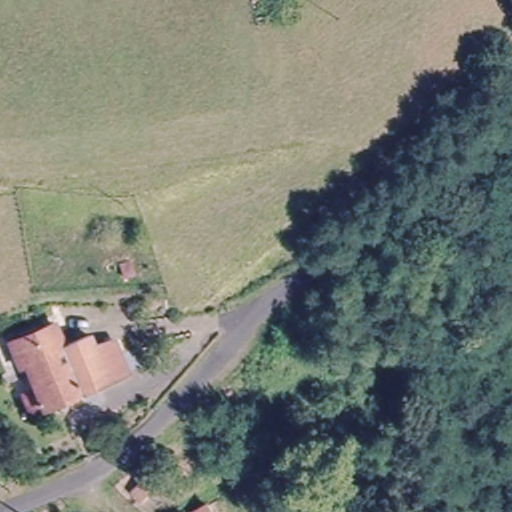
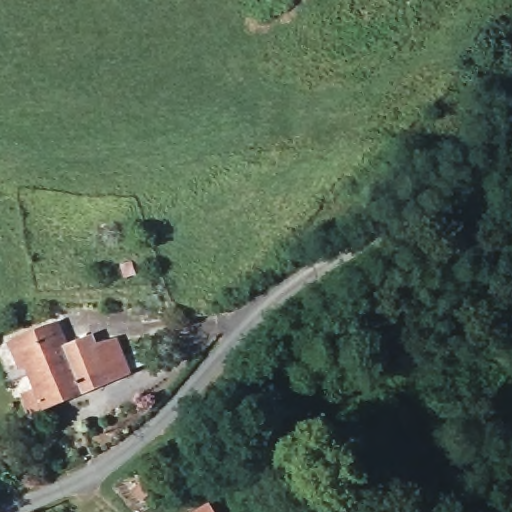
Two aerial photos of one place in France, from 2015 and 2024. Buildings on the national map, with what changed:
unchanged [(56,321),(64,341),(90,331),(95,344),(115,336),(122,352),(140,344),(146,359),(127,366),(44,402),(31,407),(24,390),(36,385),(30,370),(26,360),(21,362),(11,340),(32,331),(56,321)]
unchanged [(141,499),(132,491),(140,484),(148,493),(141,499)]
unchanged [(198,512),(207,506),(211,512),(198,512)]

